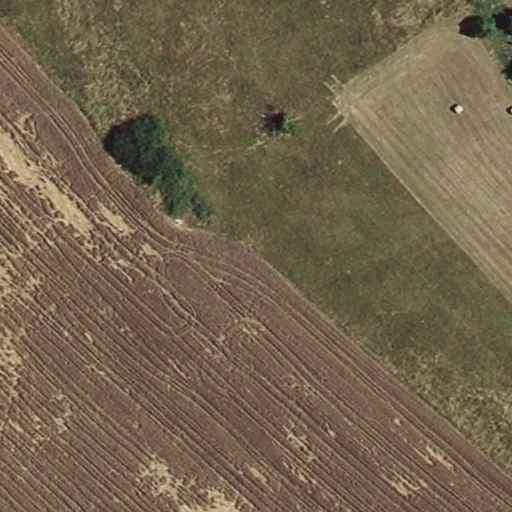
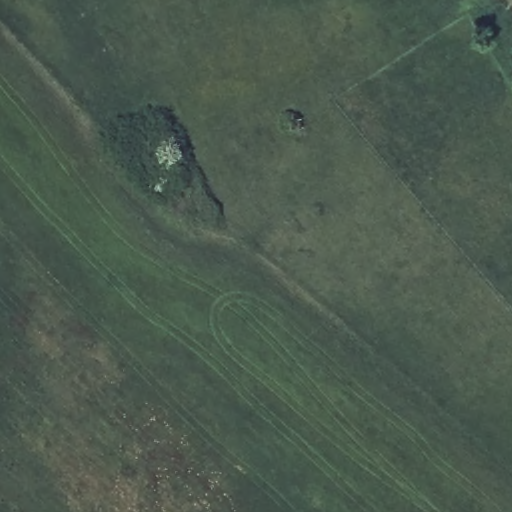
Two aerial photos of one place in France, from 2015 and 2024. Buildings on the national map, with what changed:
[]

